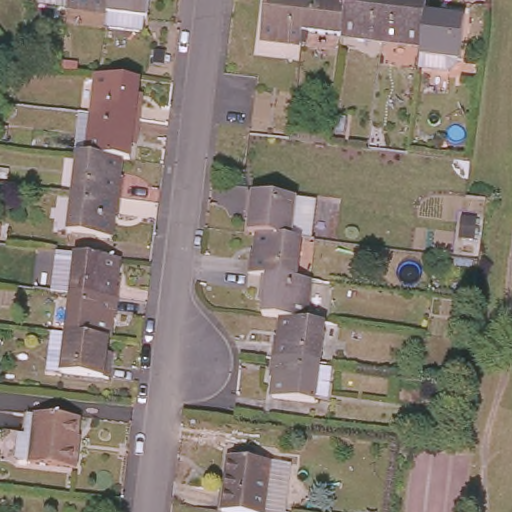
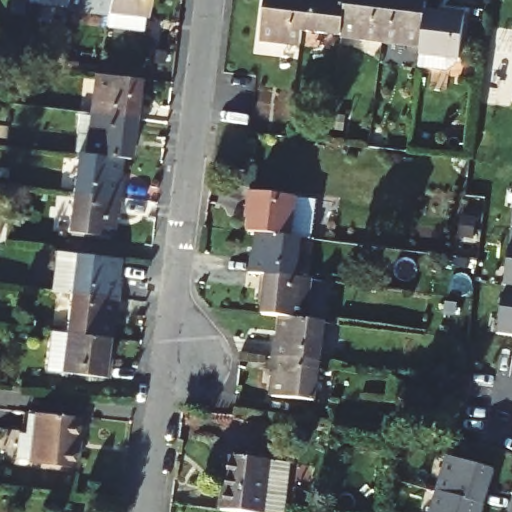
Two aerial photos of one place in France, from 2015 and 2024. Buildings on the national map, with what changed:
unchanged [(109,2),(108,11),(68,6),(68,0),(109,0),(109,2)]
unchanged [(147,16),(108,11),(109,2),(109,0),(149,0),(147,16)]
unchanged [(256,39),(260,0),(300,0),(297,31),(296,43),(256,39)]
unchanged [(337,36),(297,31),(300,0),(341,0),(337,36)]
unchanged [(376,41),(337,36),(341,0),(381,0),(376,41)]
unchanged [(381,0),(402,0),(422,3),(421,13),(416,45),(376,41),(381,0)]
unchanged [(416,45),(421,13),(440,14),(441,10),(460,13),(454,60),(415,56),(416,45)]
unchanged [(139,79),(137,99),(141,100),(138,119),(120,117),(91,114),(96,74),(100,74),(139,79)]
unchanged [(91,114),(120,117),(138,119),(136,139),(132,139),(130,159),(120,158),(113,157),(86,154),(91,114)]
unchanged [(73,192),(77,152),(86,154),(113,157),(120,158),(118,177),(122,177),(120,198),(73,192)]
unchanged [(250,212),(245,212),(247,191),(295,196),(290,237),(283,236),(258,233),(248,232),(250,212)]
unchanged [(118,218),(113,218),(111,237),(68,232),(73,192),(120,198),(118,218)]
new [(2,225),(1,242),(0,242),(0,224),(2,225)]
unchanged [(251,254),(256,254),(258,233),(283,236),(290,237),(301,238),(296,279),(261,275),(249,273),(251,254)]
new [(512,238),(512,287),(505,286),(512,238)]
unchanged [(54,255),(118,263),(116,283),(120,284),(117,303),(70,298),(50,295),(54,255)]
unchanged [(280,317),(263,315),(265,295),(260,294),(261,275),(296,279),(310,281),(305,320),(280,317)]
new [(512,287),(512,336),(499,334),(505,286),(512,287)]
unchanged [(117,303),(115,323),(111,323),(109,343),(71,339),(65,338),(70,298),(117,303)]
unchanged [(273,336),(277,337),(280,317),(305,320),(323,322),(318,361),(301,359),(271,356),(273,336)]
unchanged [(71,339),(109,343),(106,363),(110,364),(108,383),(60,377),(65,338),(71,339)]
unchanged [(301,359),(318,361),(313,401),(270,396),(273,376),(269,376),(271,356),(301,359)]
unchanged [(81,417),(76,468),(31,463),(37,413),(81,417)]
unchanged [(228,455),(270,460),(264,512),(243,512),(221,510),(228,455)]
new [(437,492),(448,457),(495,471),(485,507),(437,492)]
new [(485,507),(483,512),(431,512),(437,492),(485,507)]

